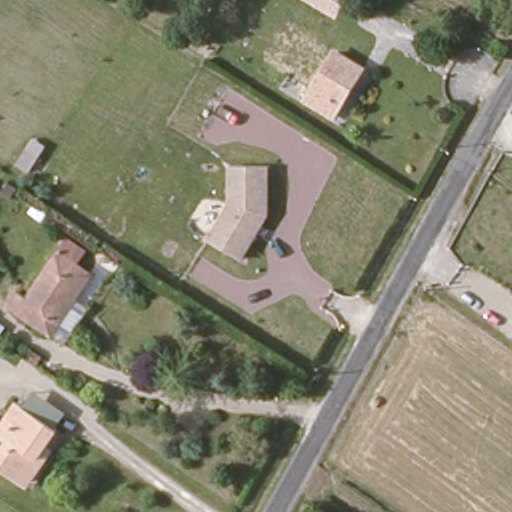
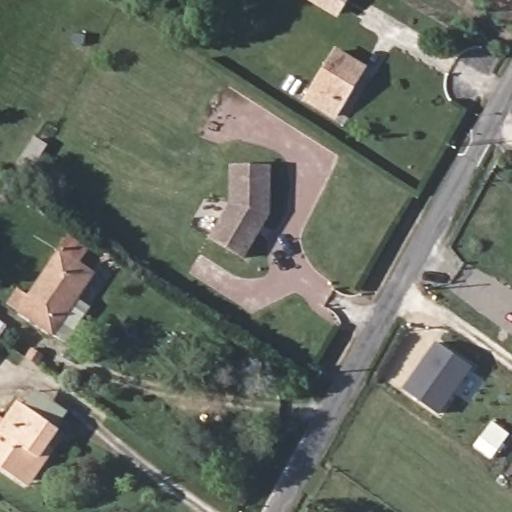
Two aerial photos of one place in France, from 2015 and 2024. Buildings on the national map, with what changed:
unchanged [(306,0),(346,0),(337,18),(306,0)]
unchanged [(367,66),(336,117),(308,100),(337,50),(367,66)]
unchanged [(272,214),(247,258),(214,239),(232,206),(232,164),(272,165),(272,214)]
unchanged [(65,342),(47,331),(2,300),(12,283),(23,290),(65,230),(85,243),(72,260),(89,268),(70,296),(89,307),(65,342)]
unchanged [(0,333),(2,334),(0,336),(0,333)]
new [(440,415),(404,390),(437,342),(472,368),(440,415)]
unchanged [(29,489),(24,485),(0,469),(0,412),(10,419),(22,401),(64,426),(51,446),(59,450),(62,451),(34,491),(29,489)]

